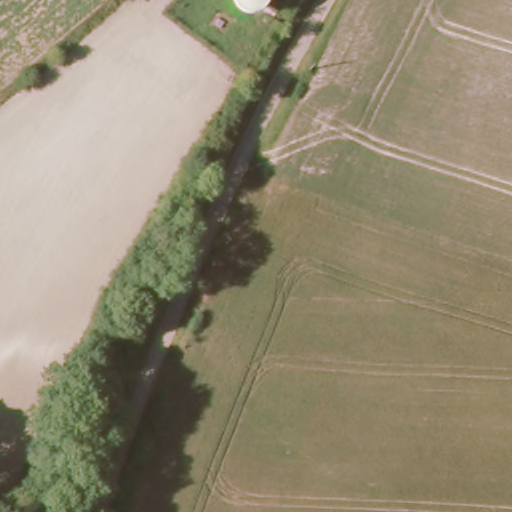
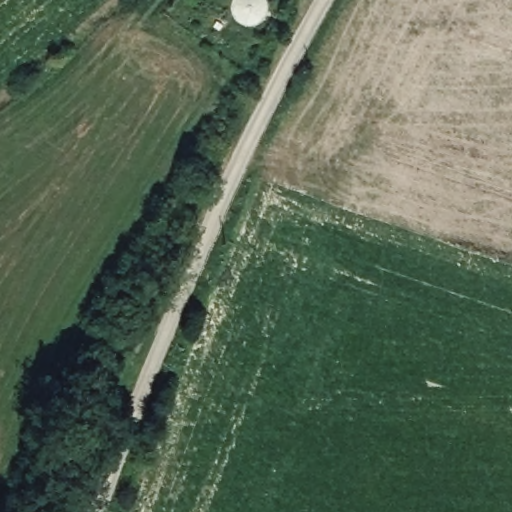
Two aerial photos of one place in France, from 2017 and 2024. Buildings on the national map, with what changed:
unchanged [(244,12),(234,31),(215,19),(224,1),(244,12)]

